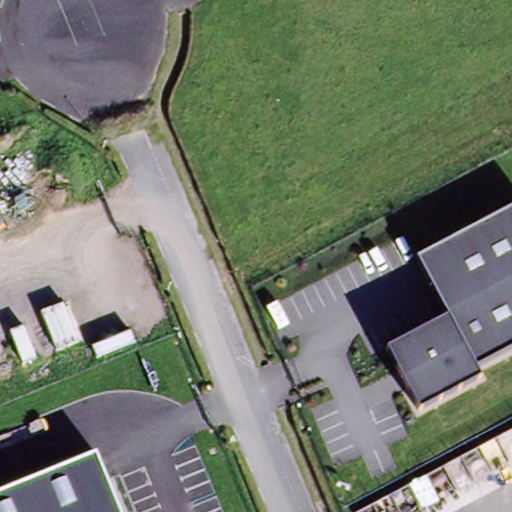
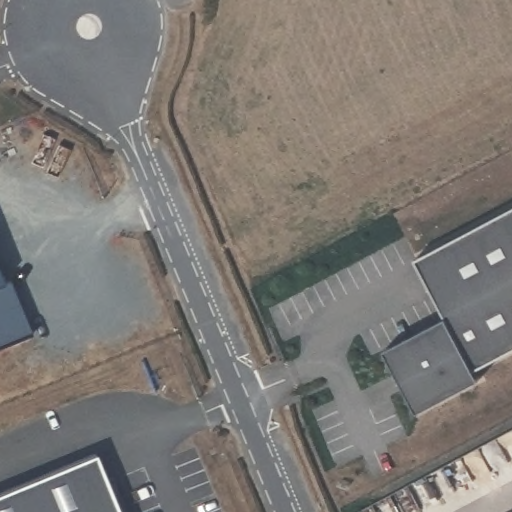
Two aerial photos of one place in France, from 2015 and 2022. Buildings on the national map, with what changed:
unchanged [(417,258),(512,207),(512,348),(475,368),(479,377),(417,410),(386,349),(446,317),(417,258)]
new [(5,280),(11,277),(34,331),(0,345),(0,269),(5,280)]
unchanged [(95,453),(119,512),(0,512),(0,492),(95,453)]

